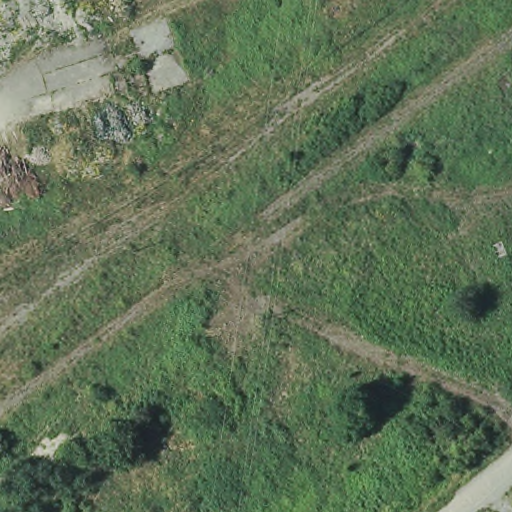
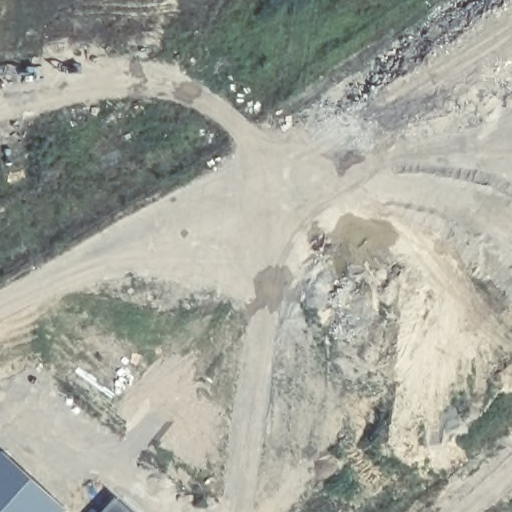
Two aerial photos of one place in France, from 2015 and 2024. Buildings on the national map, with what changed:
new [(69,510),(68,512),(0,512),(0,456),(4,451),(69,510)]
new [(107,512),(118,500),(132,512),(107,512)]

